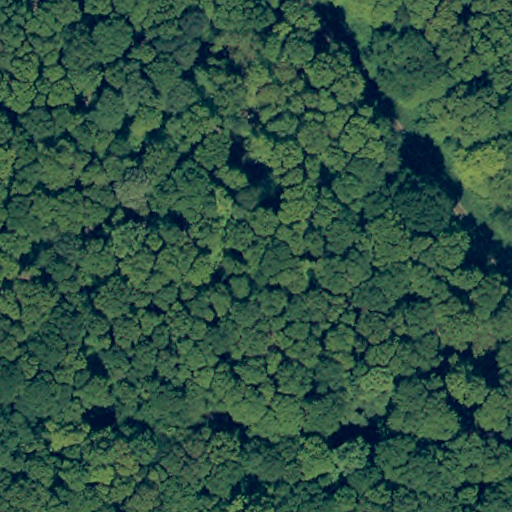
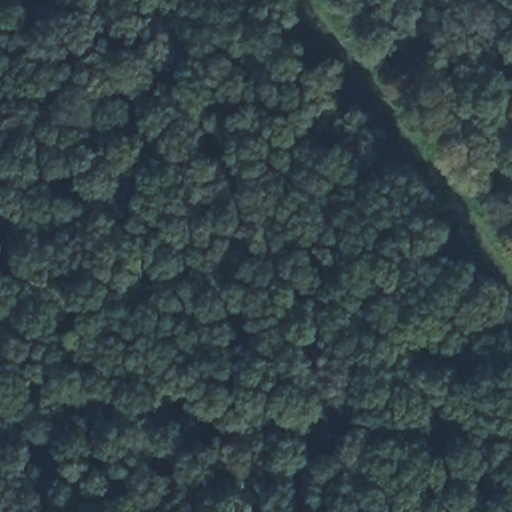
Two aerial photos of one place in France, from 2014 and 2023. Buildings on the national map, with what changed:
[]

